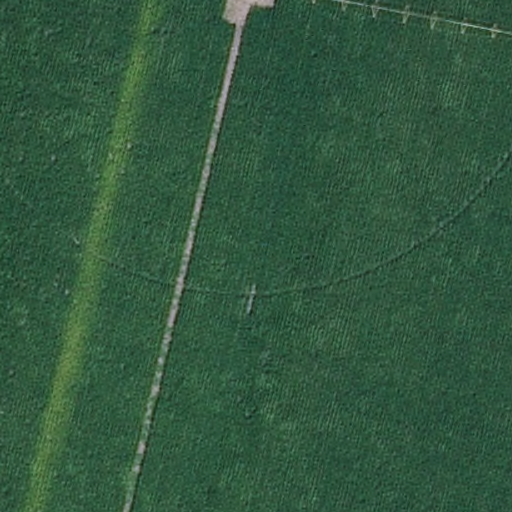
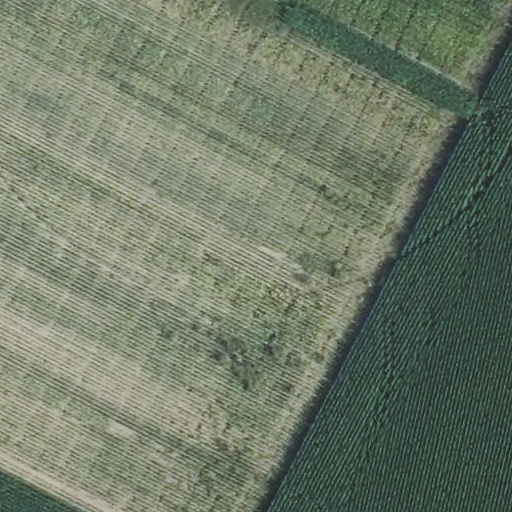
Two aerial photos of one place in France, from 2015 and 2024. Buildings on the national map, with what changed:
[]

